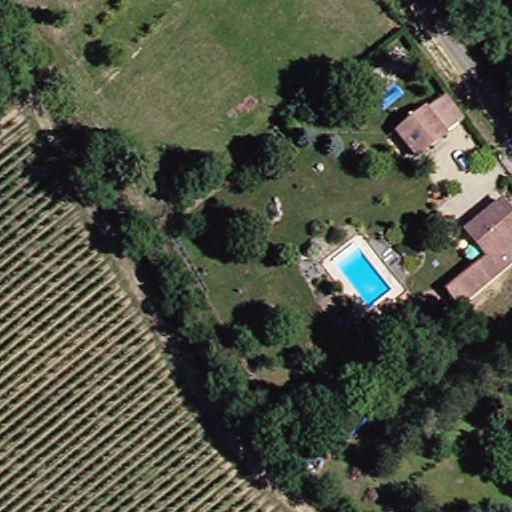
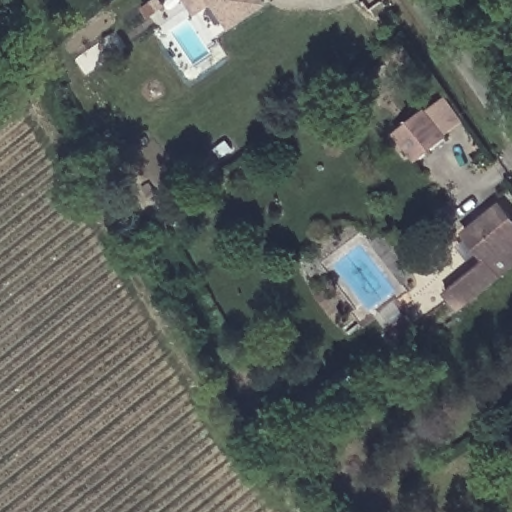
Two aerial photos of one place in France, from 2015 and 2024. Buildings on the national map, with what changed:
new [(270,4),(231,31),(215,5),(198,16),(187,0),(267,0),(270,4)]
unchanged [(465,119),(417,161),(398,135),(448,95),(465,119)]
unchanged [(454,230),(496,201),(512,224),(512,261),(500,269),(475,290),(453,312),(438,295),(475,262),(454,230)]

